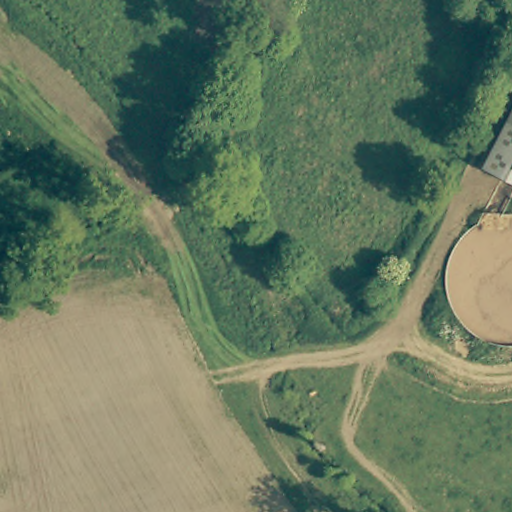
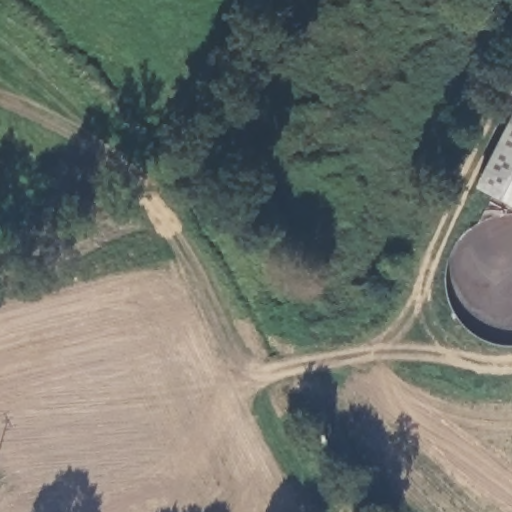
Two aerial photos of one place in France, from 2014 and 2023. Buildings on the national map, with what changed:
unchanged [(512,106),(512,210),(469,190),(512,106)]

